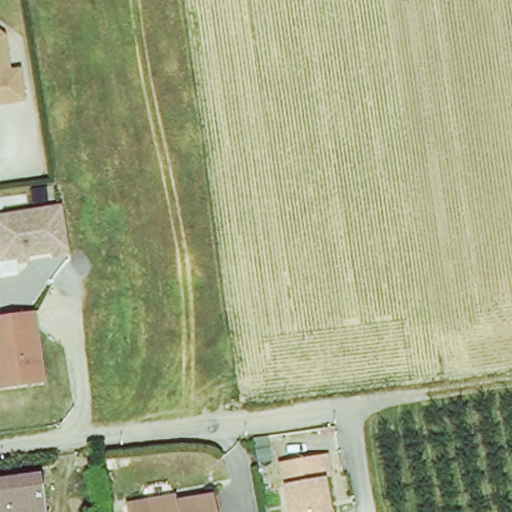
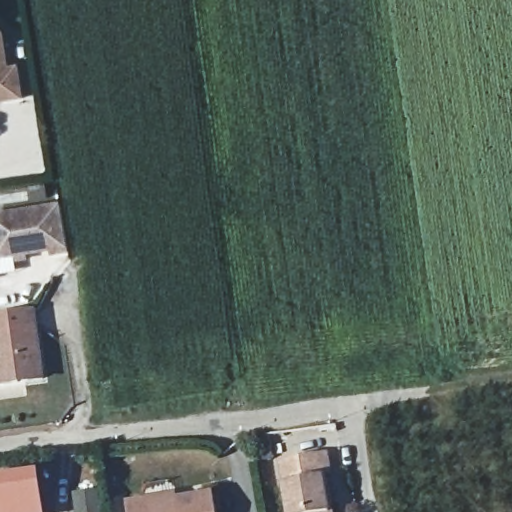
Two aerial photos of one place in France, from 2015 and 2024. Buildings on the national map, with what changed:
unchanged [(5,66),(15,65),(20,95),(0,98),(0,31),(5,66)]
unchanged [(0,259),(0,211),(57,202),(65,249),(48,252),(47,247),(21,251),(22,256),(0,259)]
unchanged [(33,307),(42,377),(0,382),(0,311),(33,307)]
unchanged [(286,512),(277,462),(324,454),(327,473),(322,474),(329,512),(286,512)]
unchanged [(0,512),(0,479),(37,473),(42,507),(14,510),(14,512),(0,512)]
unchanged [(174,492),(175,498),(213,491),(217,512),(130,512),(128,499),(174,492)]

